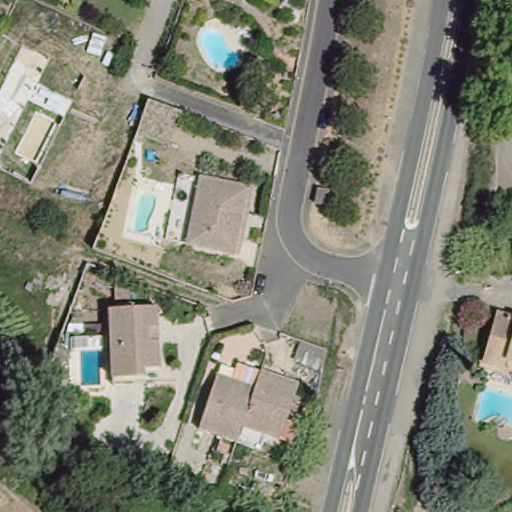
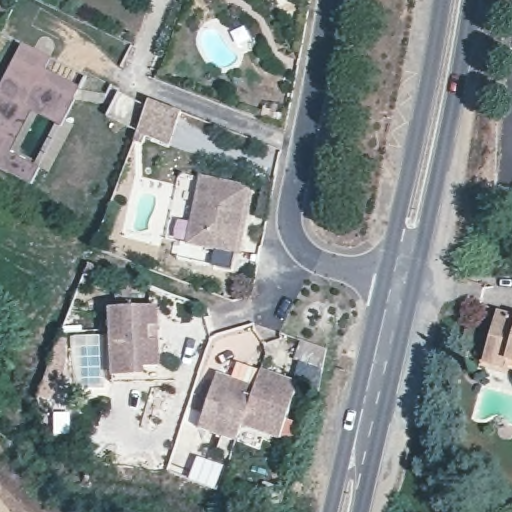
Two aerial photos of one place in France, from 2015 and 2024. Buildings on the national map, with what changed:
new [(55,50),(44,73),(80,91),(71,109),(35,92),(2,158),(0,157),(0,94),(28,37),(55,50)]
unchanged [(147,102),(182,113),(171,145),(136,133),(147,102)]
unchanged [(201,179),(247,189),(233,254),(188,244),(201,179)]
unchanged [(322,210),(313,208),(315,193),(325,195),(322,210)]
unchanged [(113,307),(160,305),(160,325),(160,338),(160,356),(161,377),(117,379),(116,372),(113,307)]
unchanged [(504,368),(483,363),(498,313),(512,317),(512,371),(504,368)]
unchanged [(241,424),(235,441),(196,425),(220,371),(256,387),(241,424)]
unchanged [(263,371),(300,387),(278,440),(241,424),(256,387),(263,371)]

